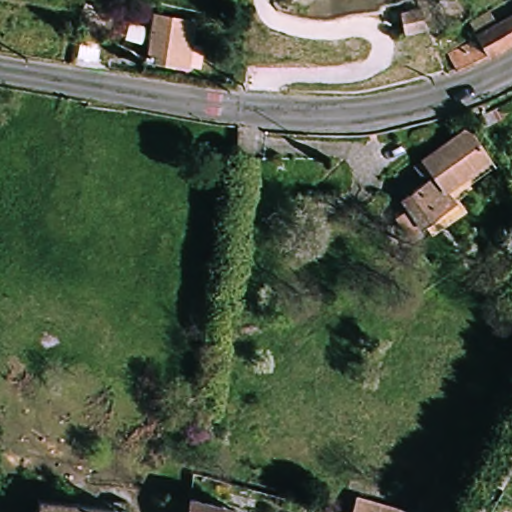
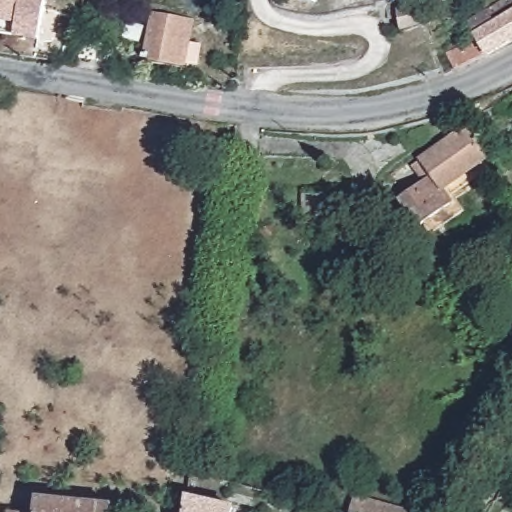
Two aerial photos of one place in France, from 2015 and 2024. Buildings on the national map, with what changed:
new [(42,0),(38,35),(0,30),(0,0),(42,0)]
unchanged [(428,0),(436,0),(444,20),(408,35),(397,11),(428,0)]
unchanged [(496,0),(497,0),(512,0),(512,39),(464,61),(454,43),(505,20),(496,0)]
unchanged [(144,59),(150,17),(191,20),(187,61),(144,59)]
unchanged [(106,45),(101,68),(78,65),(81,43),(106,45)]
unchanged [(487,159),(444,188),(452,205),(413,231),(395,204),(429,178),(418,161),(467,126),(487,159)]
unchanged [(37,490),(127,499),(125,512),(32,512),(37,490)]
unchanged [(233,502),(231,512),(180,512),(183,492),(233,502)]
unchanged [(407,510),(406,512),(351,512),(355,496),(407,510)]

